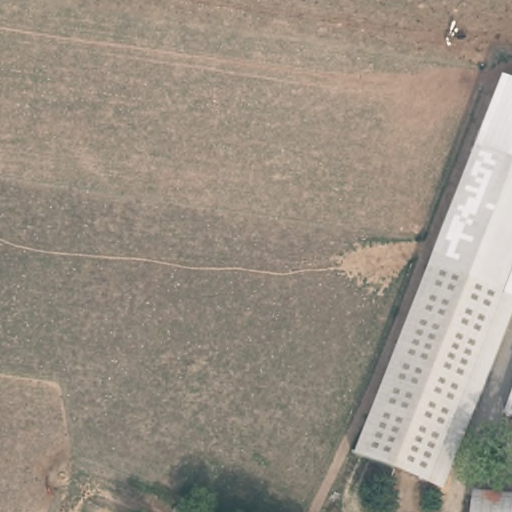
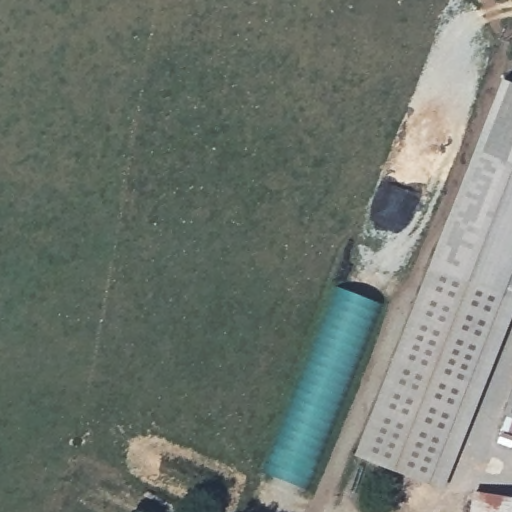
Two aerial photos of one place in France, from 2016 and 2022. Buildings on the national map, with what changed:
unchanged [(445,491),(355,452),(504,81),(512,84),(512,317),(445,491)]
new [(312,489),(268,472),(340,287),(387,305),(312,489)]
unchanged [(504,417),(512,392),(512,418),(504,417)]
unchanged [(471,491),(512,497),(512,512),(468,512),(471,491)]

